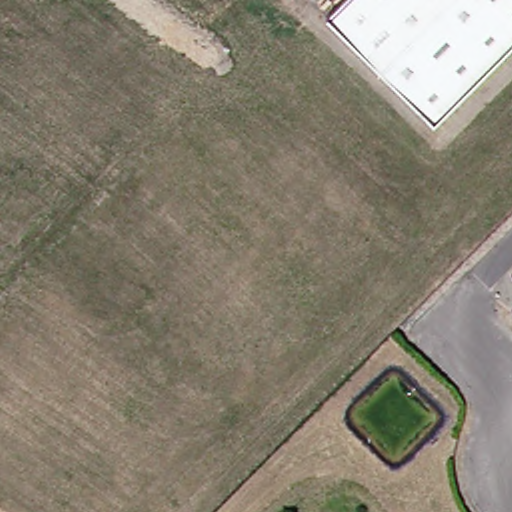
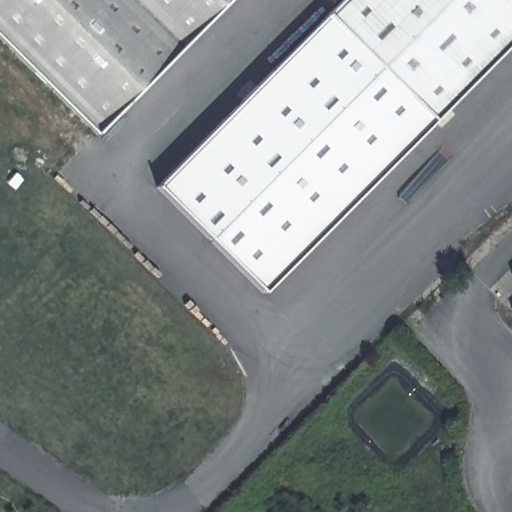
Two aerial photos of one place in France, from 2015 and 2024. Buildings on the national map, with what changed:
new [(103,123),(0,21),(0,0),(220,0),(103,123)]
unchanged [(512,41),(436,119),(327,13),(340,0),(512,0),(512,41)]
new [(436,119),(263,293),(155,187),(327,13),(436,119)]
unchanged [(512,312),(512,315),(510,314),(512,312)]

